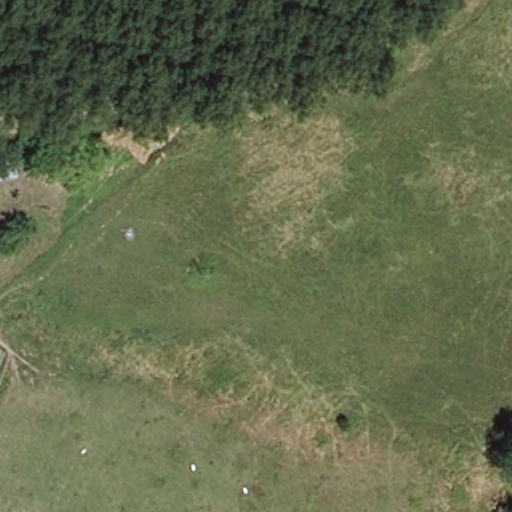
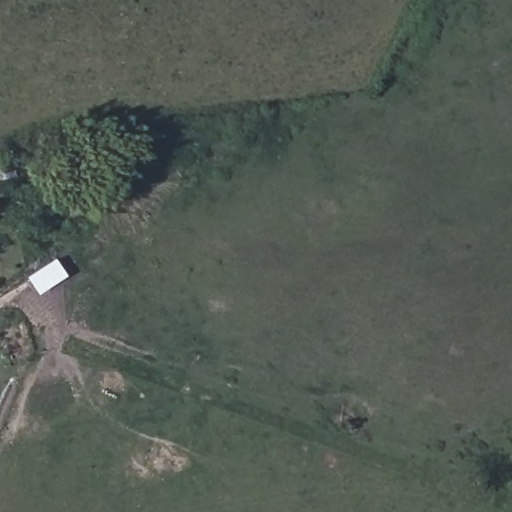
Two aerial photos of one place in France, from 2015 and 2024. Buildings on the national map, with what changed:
[]

